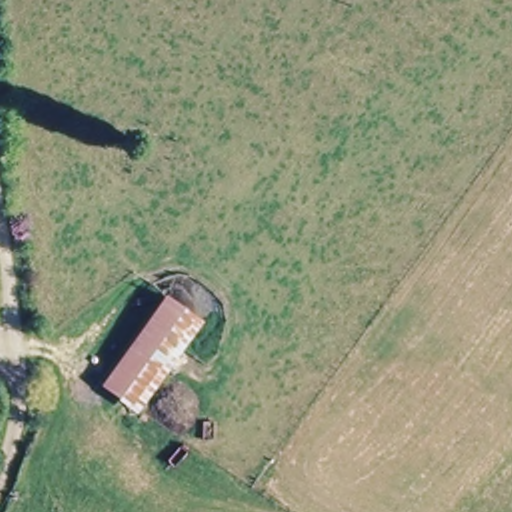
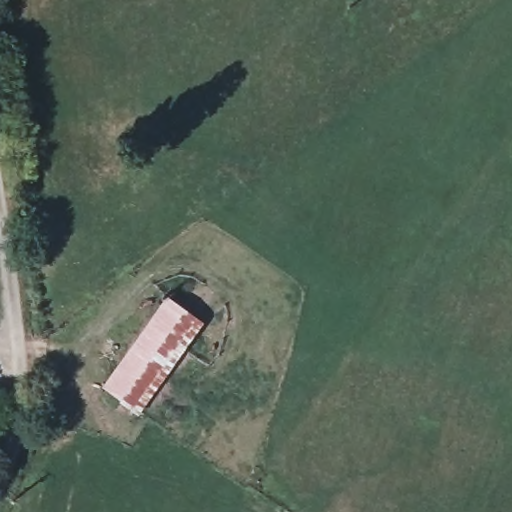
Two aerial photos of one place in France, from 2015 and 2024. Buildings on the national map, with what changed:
unchanged [(206,320),(144,411),(108,384),(171,294),(206,320)]

